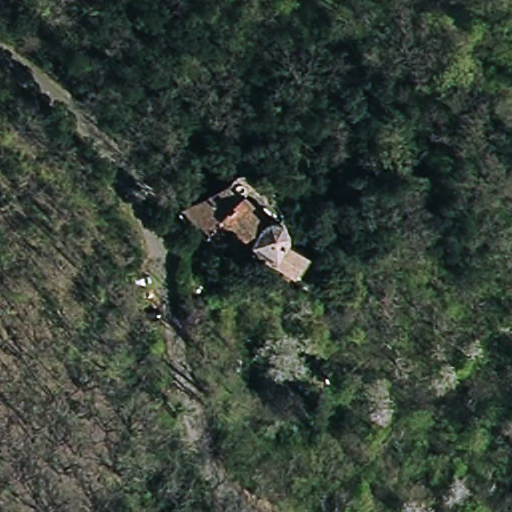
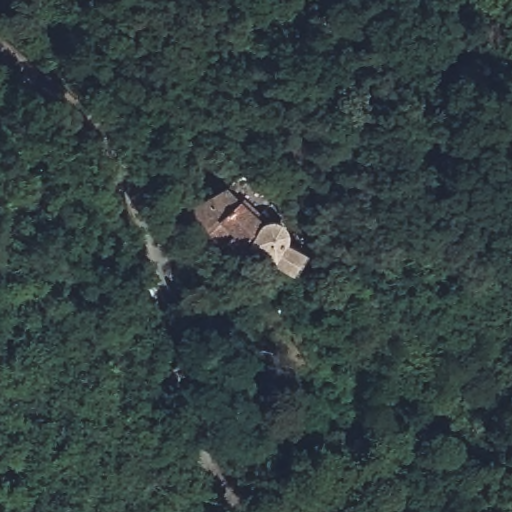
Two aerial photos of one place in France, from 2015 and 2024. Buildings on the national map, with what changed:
unchanged [(290,234),(290,241),(308,257),(298,273),(261,247),(252,257),(246,256),(233,246),(225,252),(180,212),(229,185),(266,216),(285,220),(290,234)]

